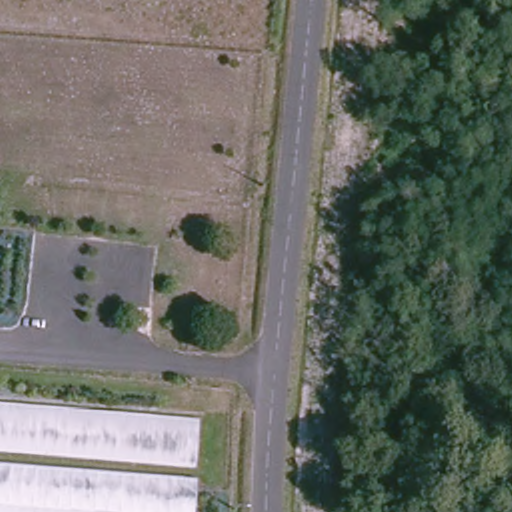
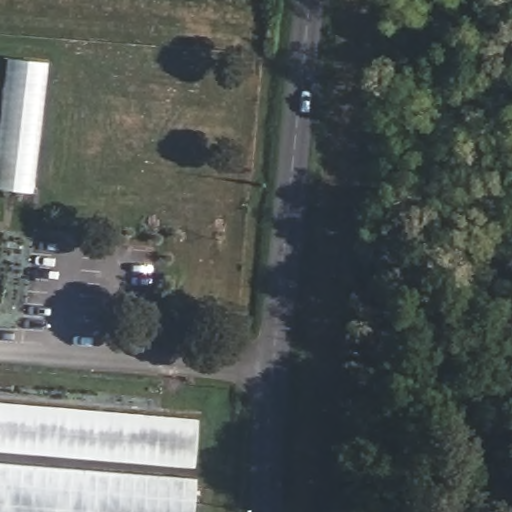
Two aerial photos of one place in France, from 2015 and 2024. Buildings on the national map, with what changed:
new [(33,192),(0,188),(0,120),(7,57),(47,62),(33,192)]
unchanged [(193,467),(0,452),(0,403),(196,418),(193,467)]
unchanged [(0,512),(0,464),(194,480),(192,512),(0,512)]

